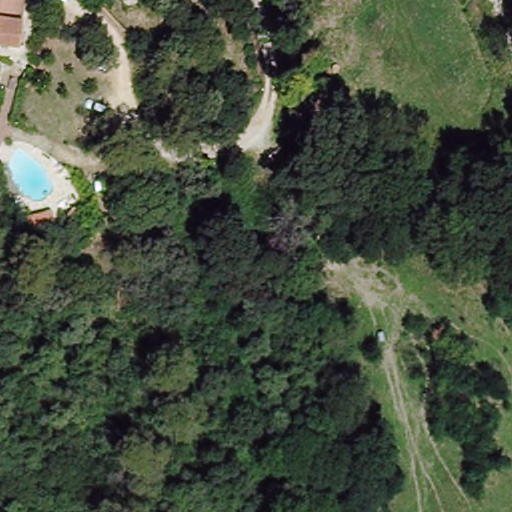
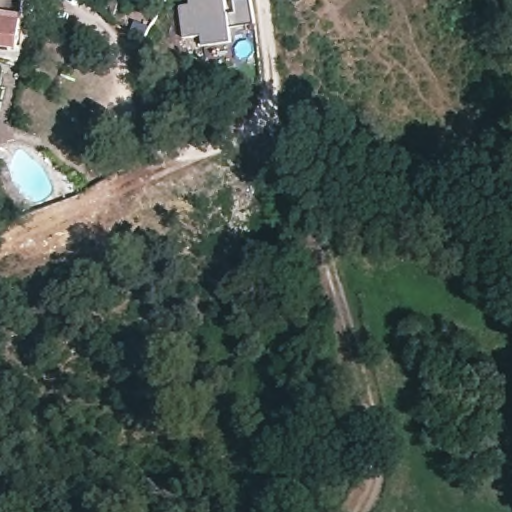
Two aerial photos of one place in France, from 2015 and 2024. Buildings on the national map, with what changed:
new [(186,0),(222,0),(224,11),(230,10),(229,0),(247,0),(251,21),(226,26),(229,40),(199,45),(198,35),(180,38),(175,5),(186,3),(186,0)]
unchanged [(22,6),(17,53),(0,51),(0,4),(22,6)]
unchanged [(52,208),(59,229),(26,236),(22,217),(52,208)]

